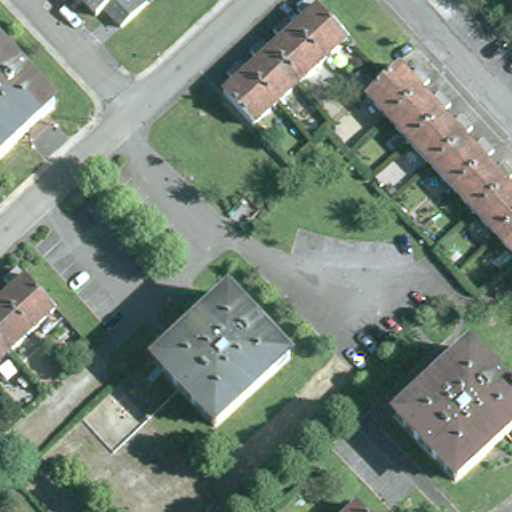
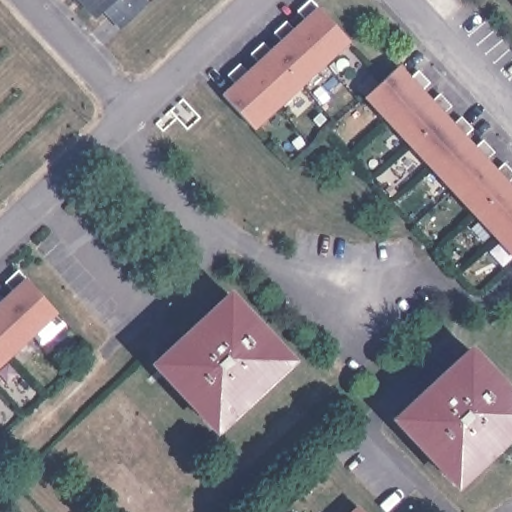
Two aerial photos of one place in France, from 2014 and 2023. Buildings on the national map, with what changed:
unchanged [(87,0),(151,0),(153,2),(127,26),(110,8),(102,16),(87,0)]
unchanged [(236,91),(228,83),(241,71),(248,79),(258,70),(251,62),(263,50),(271,59),(282,49),(275,40),(287,29),(294,37),(305,27),(297,19),(310,8),(348,49),(253,136),(223,102),(236,91)]
demolished [(0,158),(0,48),(55,107),(0,158)]
unchanged [(367,95),(400,65),(410,77),(419,69),(429,80),(421,88),(431,98),(439,91),(451,103),(443,111),(453,122),(462,115),(473,127),(465,134),(475,144),(482,137),(494,149),(486,157),(496,168),(505,160),(512,169),(512,178),(509,181),(512,185),(512,252),(367,95)]
unchanged [(13,298),(6,289),(18,278),(56,320),(0,371),(0,306),(2,308),(13,298)]
unchanged [(206,323),(215,315),(229,302),(288,368),(214,436),(156,370),(206,323)]
unchanged [(443,376),(467,353),(470,351),(511,395),(512,395),(512,435),(455,487),(395,421),(443,376)]
unchanged [(364,512),(350,512),(358,505),(364,512)]

